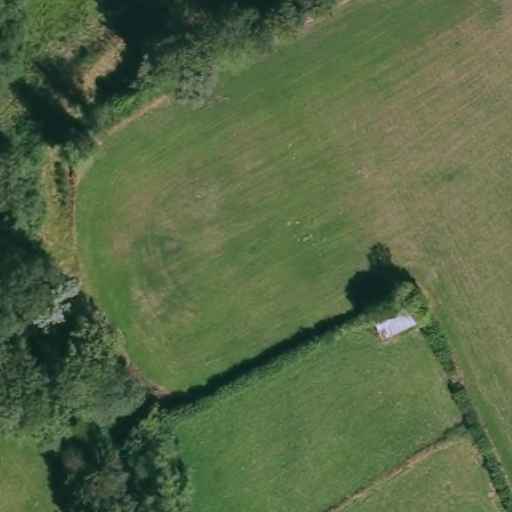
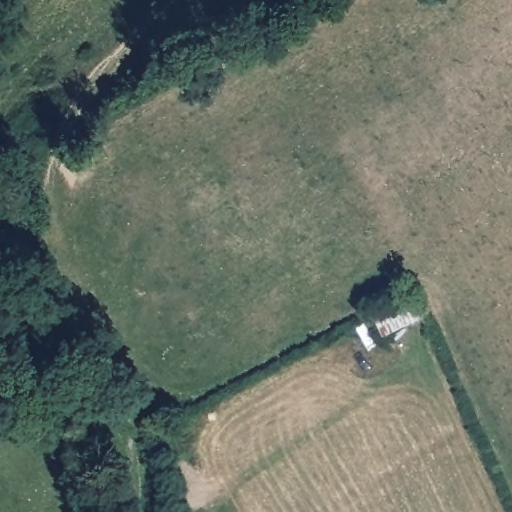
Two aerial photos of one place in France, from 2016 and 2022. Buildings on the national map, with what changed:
unchanged [(415,291),(430,320),(383,341),(370,309),(415,291)]

